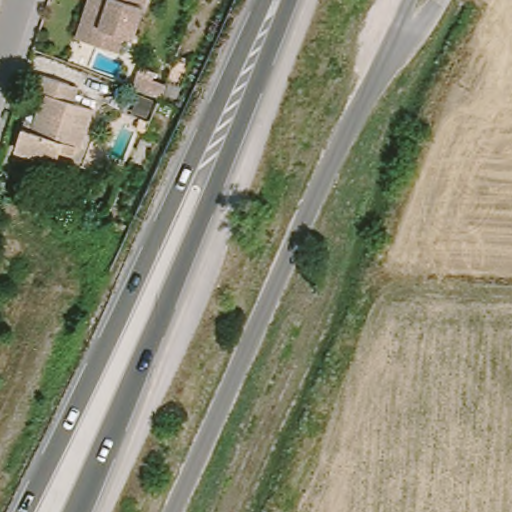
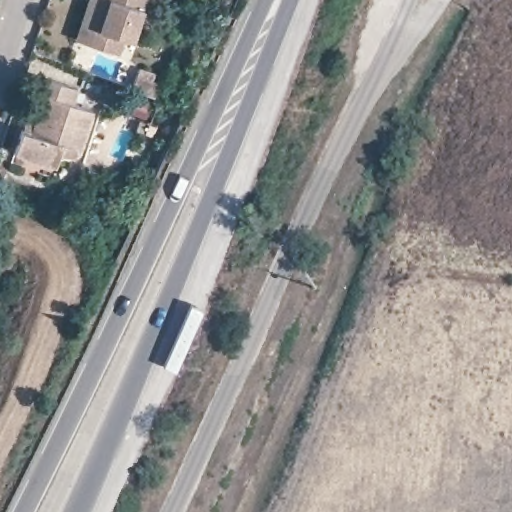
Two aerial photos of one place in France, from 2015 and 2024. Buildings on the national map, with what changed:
unchanged [(144,0),(128,45),(120,43),(115,57),(88,47),(71,43),(86,0),(144,0)]
unchanged [(138,70),(150,74),(146,81),(160,87),(156,101),(131,91),(138,70)]
unchanged [(40,86),(78,97),(73,114),(93,120),(80,159),(62,152),(55,172),(15,160),(23,137),(31,140),(43,105),(34,102),(40,86)]
unchanged [(134,130),(138,118),(148,122),(143,134),(134,130)]

